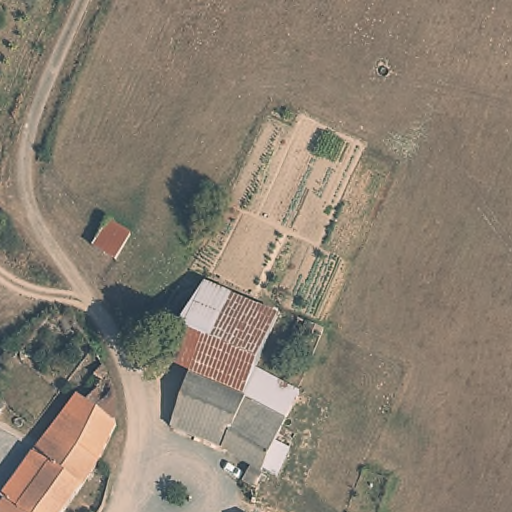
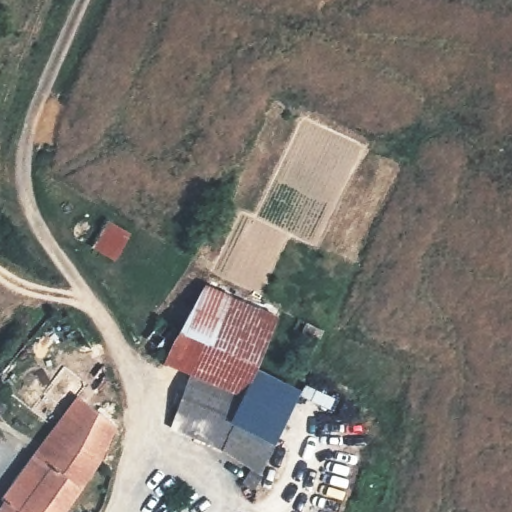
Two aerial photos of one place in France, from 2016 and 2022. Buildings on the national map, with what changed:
unchanged [(108,221),(130,234),(114,260),(91,247),(108,221)]
unchanged [(210,281),(282,312),(261,366),(250,394),(214,378),(194,369),(169,357),(188,323),(210,281)]
unchanged [(72,326),(61,333),(54,323),(52,324),(43,309),(52,300),(72,326)]
unchanged [(320,339),(313,336),(311,340),(301,335),(307,323),(324,331),(320,339)]
unchanged [(281,472),(267,465),(266,468),(266,471),(258,484),(247,476),(255,462),(229,445),(176,423),(190,383),(194,369),(214,378),(250,394),(261,366),(304,389),(288,419),(279,439),(292,445),(281,472)]
unchanged [(64,512),(1,512),(11,496),(6,492),(82,392),(121,421),(104,455),(64,512)]
unchanged [(5,409),(0,414),(0,403),(5,409)]

